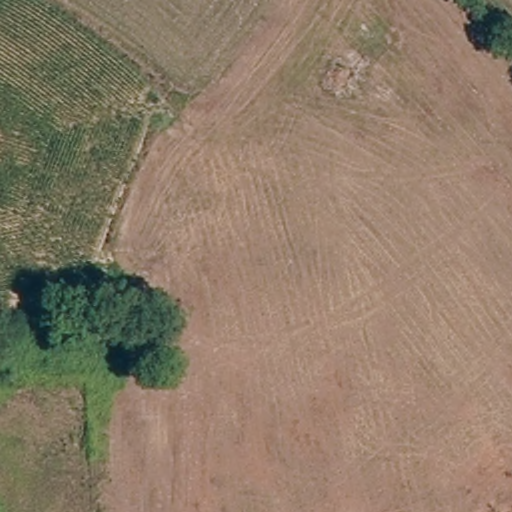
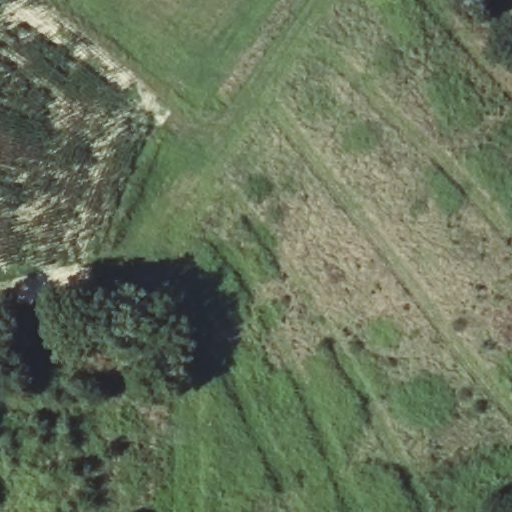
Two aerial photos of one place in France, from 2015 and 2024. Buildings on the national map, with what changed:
[]

